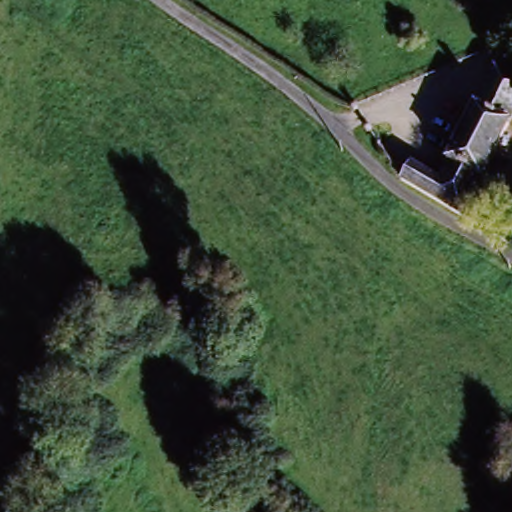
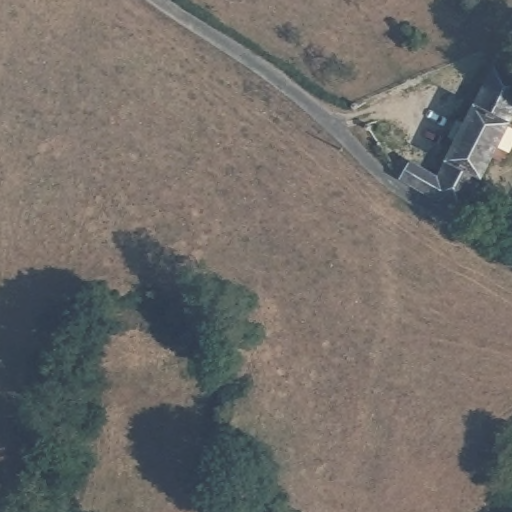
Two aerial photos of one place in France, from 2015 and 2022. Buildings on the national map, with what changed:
unchanged [(430,176),(489,64),(512,77),(512,101),(455,212),(428,195),(399,177),(407,161),(430,176)]

